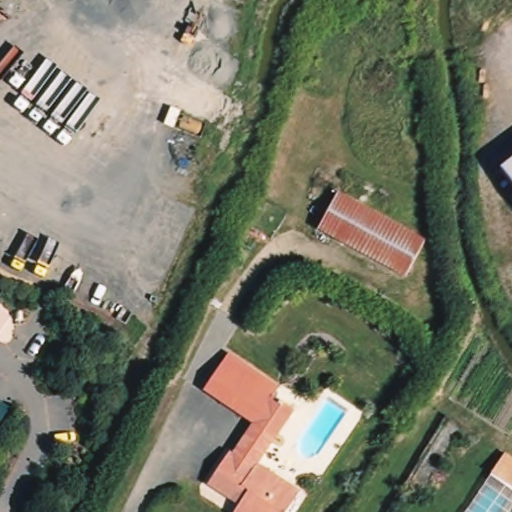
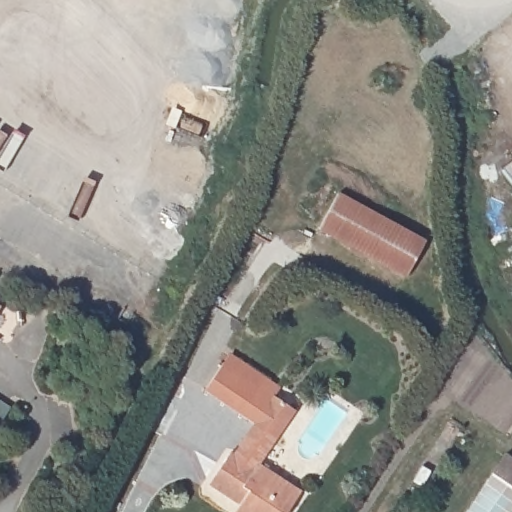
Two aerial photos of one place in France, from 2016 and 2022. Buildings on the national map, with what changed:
unchanged [(512,160),(512,185),(500,169),(512,160)]
unchanged [(337,196),(422,243),(402,277),(317,229),(337,196)]
unchanged [(279,389),(273,398),(292,411),(275,438),(257,424),(255,427),(202,392),(227,354),(279,389)]
unchanged [(233,456),(255,427),(257,424),(275,438),(280,442),(262,465),(301,497),(289,512),(248,512),(239,504),(208,478),(229,452),(233,456)]
unchanged [(509,453),(512,456),(512,483),(496,471),(509,453)]

